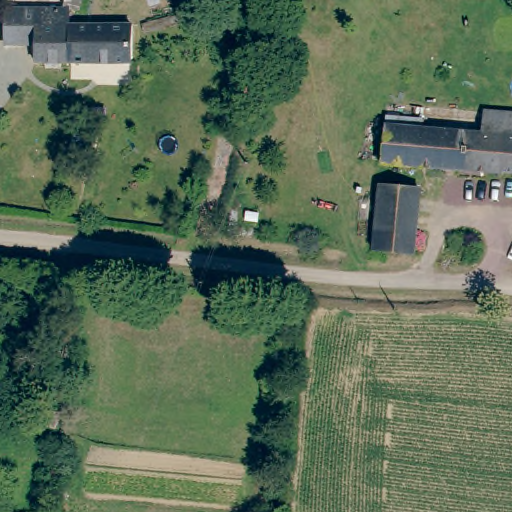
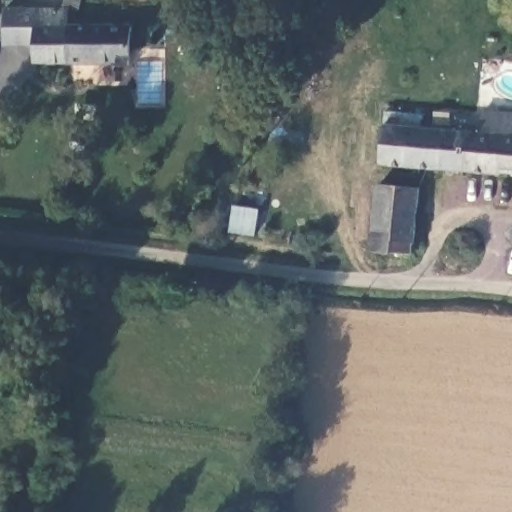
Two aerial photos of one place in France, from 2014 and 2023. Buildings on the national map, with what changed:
unchanged [(77,14),(77,30),(136,31),(138,67),(75,67),(44,67),(45,49),(14,49),(15,14),(77,14)]
unchanged [(508,139),(485,135),(487,111),(512,114),(512,175),(504,174),(508,139)]
unchanged [(384,161),(388,125),(417,127),(485,135),(508,139),(504,174),(384,161)]
unchanged [(74,139),(89,141),(86,157),(71,154),(74,139)]
unchanged [(414,255),(371,249),(381,184),(425,189),(414,255)]
unchanged [(57,362),(51,390),(37,387),(42,358),(57,362)]

